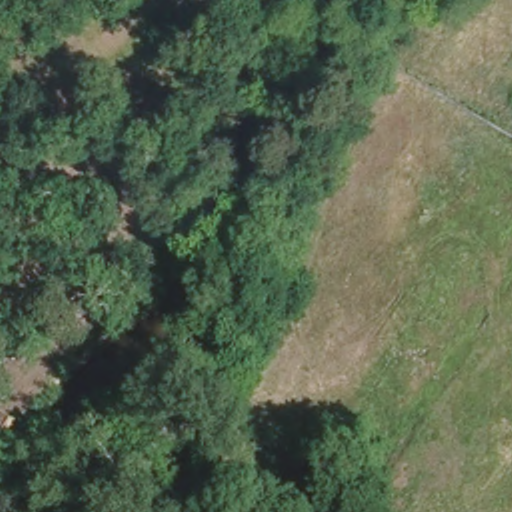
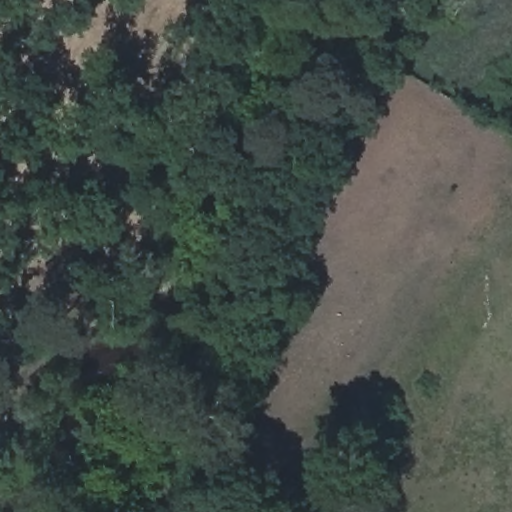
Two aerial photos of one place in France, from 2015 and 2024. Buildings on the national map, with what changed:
unchanged [(0,464),(0,419),(5,410),(26,422),(0,464)]

